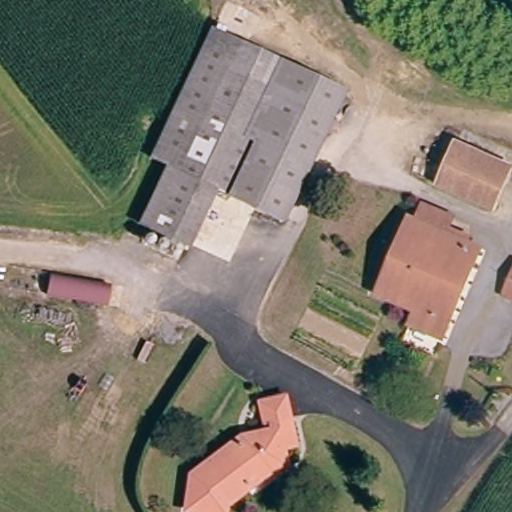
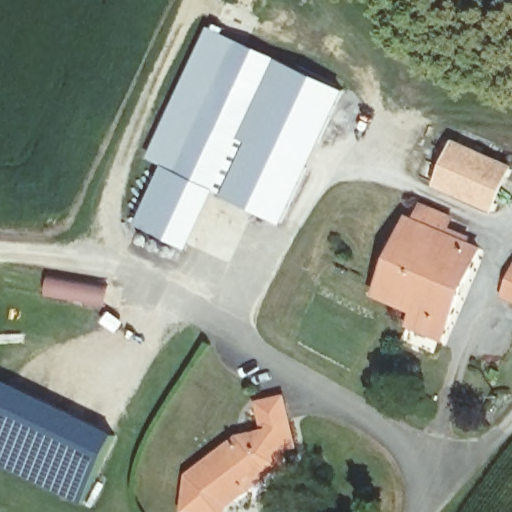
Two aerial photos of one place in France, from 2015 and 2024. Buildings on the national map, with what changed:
unchanged [(210,191),(168,174),(151,167),(201,34),(280,64),(229,197),(210,191)]
unchanged [(280,64),(337,87),(288,220),(229,197),(280,64)]
unchanged [(512,175),(495,213),(435,186),(460,127),(512,149),(512,175)]
unchanged [(187,247),(146,233),(168,174),(210,191),(187,247)]
unchanged [(420,306),(378,290),(407,216),(417,219),(423,201),(450,212),(445,229),(483,245),(451,334),(415,321),(420,306)]
unchanged [(106,277),(103,304),(49,296),(51,271),(106,277)]
unchanged [(512,276),(512,296),(505,293),(512,276)]
new [(119,434),(85,503),(0,463),(0,397),(7,381),(119,434)]
unchanged [(244,484),(224,498),(221,511),(184,503),(187,470),(236,434),(271,427),(270,420),(262,423),(257,398),(283,392),(289,418),(286,419),(291,442),(275,446),(280,460),(277,461),(246,486),(244,484)]

